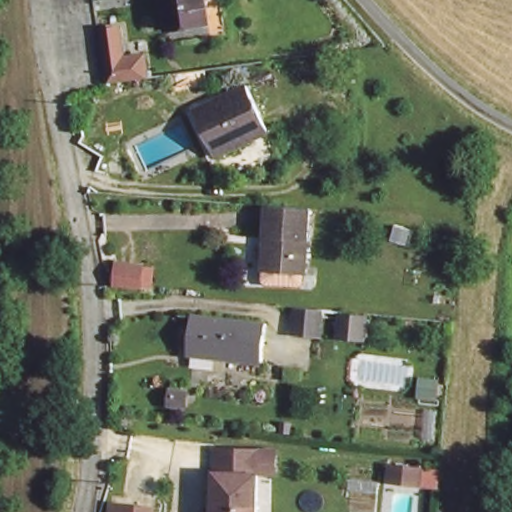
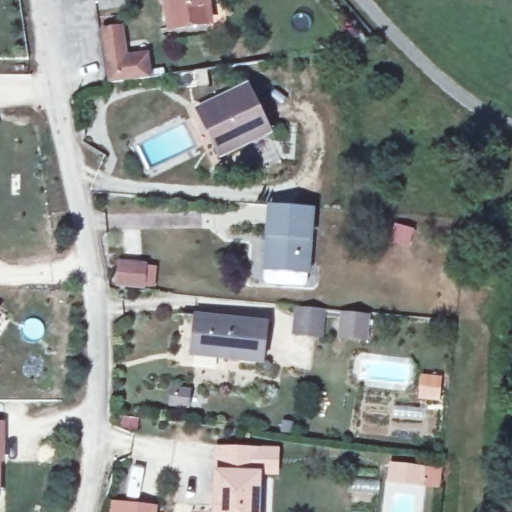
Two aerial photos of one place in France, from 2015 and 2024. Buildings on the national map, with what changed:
unchanged [(218,29),(176,37),(168,0),(212,0),(218,29)]
unchanged [(154,79),(108,85),(99,28),(126,24),(130,54),(150,52),(154,79)]
unchanged [(204,106),(257,86),(275,136),(222,156),(204,106)]
unchanged [(272,276),(269,262),(272,227),(275,197),(318,200),(313,265),(308,279),(272,276)]
unchanged [(194,312),(268,318),(264,361),(227,357),(227,352),(191,349),(194,312)]
unchanged [(360,320),(358,342),(332,339),(334,317),(360,320)]
new [(5,462),(1,461),(1,496),(0,496),(0,419),(4,420),(5,462)]
unchanged [(259,512),(218,512),(220,451),(261,452),(259,512)]
unchanged [(155,512),(107,512),(108,497),(157,502),(155,512)]

